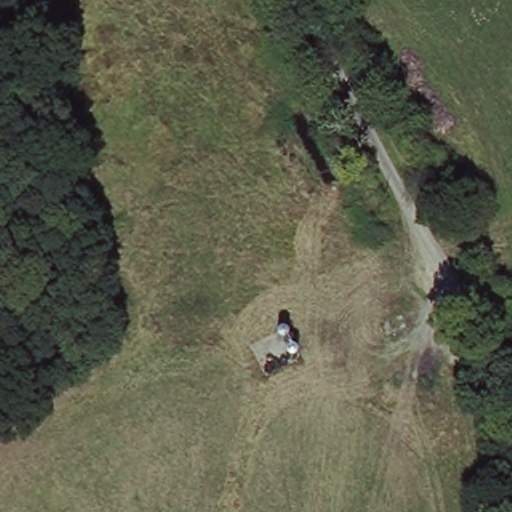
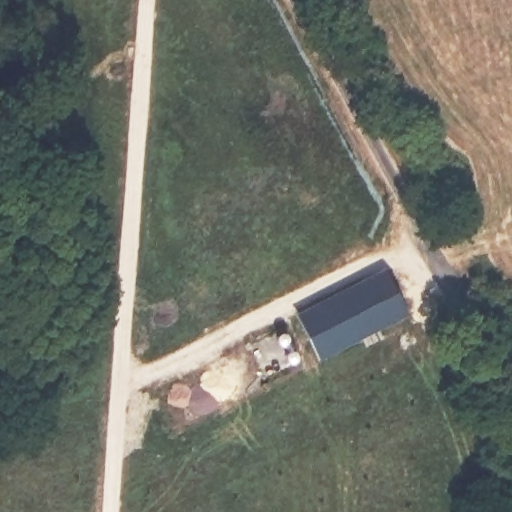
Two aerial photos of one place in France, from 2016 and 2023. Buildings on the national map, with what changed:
new [(383,277),(402,309),(320,351),(305,320),(383,277)]
unchanged [(281,330),(283,327),(286,327),(290,327),(292,328),(301,347),(302,350),(301,353),(298,356),(295,356),(292,354),(281,333),(281,330)]

